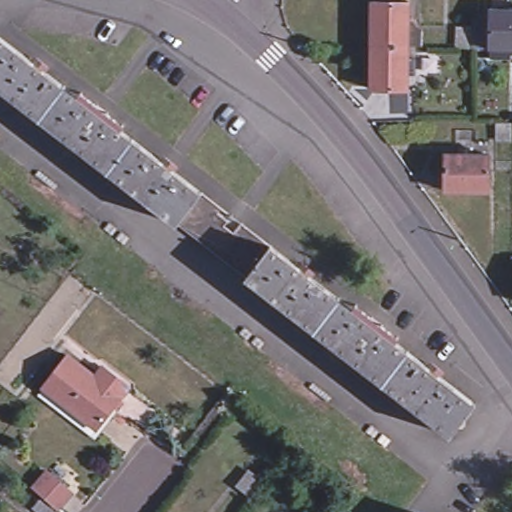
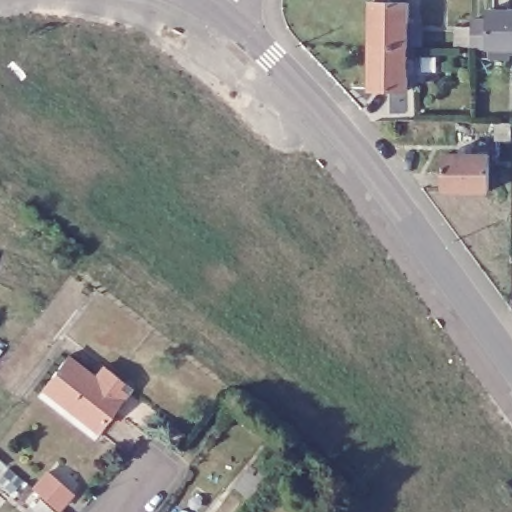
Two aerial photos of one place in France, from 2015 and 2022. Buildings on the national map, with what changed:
unchanged [(377,5),(413,6),(412,51),(376,51),(377,5)]
unchanged [(497,46),(477,46),(462,46),(462,26),(477,26),(477,19),(498,19),(498,7),(512,7),(512,56),(497,56),(497,46)]
demolished [(73,92),(48,124),(0,88),(0,49),(7,40),(73,92)]
unchanged [(376,51),(412,51),(412,94),(375,93),(376,51)]
demolished [(117,177),(48,124),(73,92),(86,102),(129,135),(142,145),(117,177)]
unchanged [(512,146),(503,145),(503,127),(512,128),(512,146)]
demolished [(186,231),(117,177),(142,145),(212,198),(225,209),(241,221),(215,253),(200,241),(186,231)]
unchanged [(492,158),(492,196),(448,197),(448,159),(492,158)]
demolished [(240,273),(225,260),(250,228),(265,240),(280,251),(348,304),(324,337),(255,283),(240,273)]
demolished [(403,347),(416,357),(392,390),(324,337),(348,304),(361,314),(403,347)]
unchanged [(102,373),(110,362),(126,374),(122,379),(132,387),(127,393),(118,405),(122,408),(100,435),(43,389),(49,382),(74,350),(102,373)]
demolished [(482,409),(458,441),(392,390),(416,357),(482,409)]
unchanged [(75,497),(64,512),(62,512),(36,493),(48,477),(75,497)]

